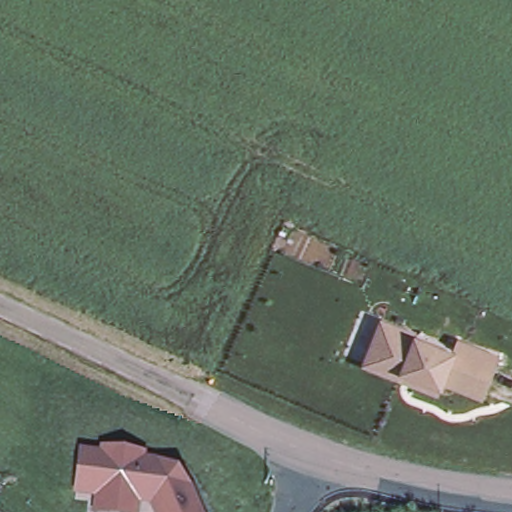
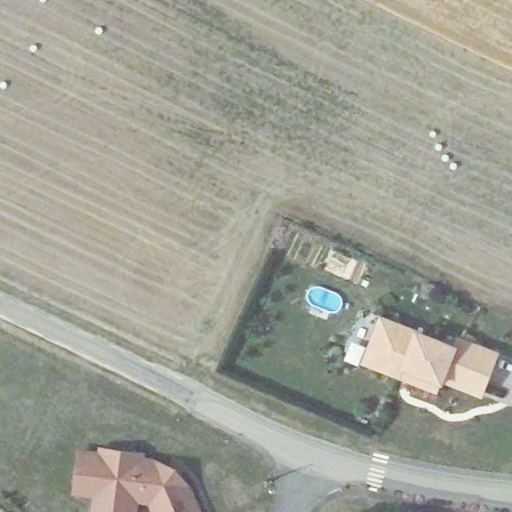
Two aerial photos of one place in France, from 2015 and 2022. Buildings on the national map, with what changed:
unchanged [(402,377),(400,381),(377,372),(364,365),(370,350),(380,320),(454,349),(457,341),(497,357),(480,398),(442,383),(441,386),(439,392),(402,377)]
unchanged [(99,447),(145,451),(145,457),(155,459),(175,466),(192,486),(203,512),(151,512),(149,507),(139,506),(138,512),(91,512),(93,499),(72,497),(77,451),(98,451),(99,447)]

